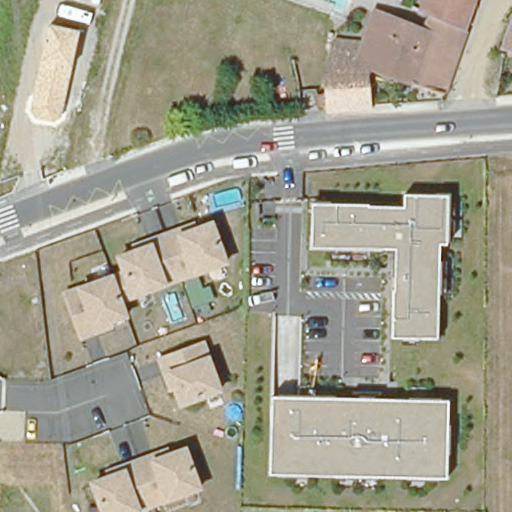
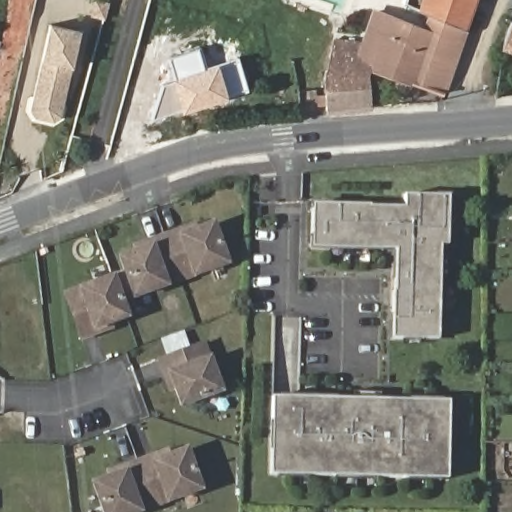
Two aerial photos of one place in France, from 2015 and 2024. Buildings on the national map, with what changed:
unchanged [(465,31),(416,14),(422,0),(476,0),(465,31)]
unchanged [(324,78),(334,41),(361,44),(374,11),(413,23),(416,14),(465,31),(444,93),(409,85),(370,73),(372,109),(328,112),(324,78)]
unchanged [(507,21),(512,22),(512,50),(497,46),(507,21)]
unchanged [(36,118),(31,109),(42,60),(49,24),(80,30),(72,67),(61,117),(53,122),(36,118)]
new [(161,85),(172,81),(171,79),(173,78),(168,58),(198,47),(204,67),(215,64),(238,58),(248,91),(226,98),(180,113),(179,110),(151,117),(161,85)]
demolished [(47,154),(51,140),(68,144),(66,151),(64,159),(47,154)]
demolished [(511,166),(512,166),(512,255),(511,255),(511,166)]
unchanged [(313,203),(406,206),(406,193),(452,195),(450,245),(441,245),(439,341),(395,340),(396,250),(312,249),(313,203)]
unchanged [(126,303),(132,318),(114,323),(116,330),(80,343),(62,293),(121,272),(115,257),(155,243),(153,237),(177,228),(180,233),(215,220),(230,266),(126,303)]
unchanged [(180,409),(173,392),(167,394),(158,358),(208,341),(226,394),(180,409)]
unchanged [(447,480),(270,475),(274,395),(450,400),(447,480)]
unchanged [(102,512),(90,480),(126,467),(122,462),(153,452),(155,458),(188,446),(204,490),(147,512),(102,512)]

